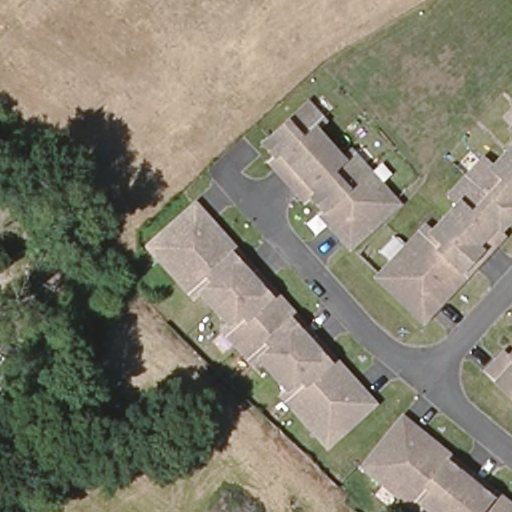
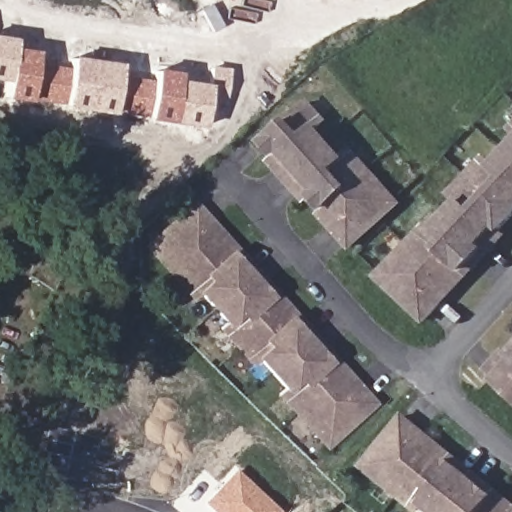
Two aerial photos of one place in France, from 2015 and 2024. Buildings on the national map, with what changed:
new [(223,0),(228,0),(226,2),(223,0)]
new [(225,99),(208,97),(202,129),(147,121),(147,119),(116,115),(61,108),(62,105),(32,102),(6,99),(10,83),(0,81),(0,36),(14,38),(12,48),(37,51),(35,64),(69,69),(70,56),(121,64),(120,77),(154,81),(154,70),(180,73),(179,81),(207,84),(211,66),(229,68),(225,99)]
unchanged [(325,210),(313,197),(309,201),(301,192),(280,168),(272,159),(277,154),(267,142),(312,102),(328,121),(319,129),(346,159),(355,151),(398,201),(402,205),(390,215),(356,244),(353,248),(337,229),(322,213),(325,210)]
unchanged [(425,324),(390,291),(378,281),(382,277),(427,230),(433,236),(461,208),(452,199),(487,164),(496,172),(512,154),(512,221),(501,234),(505,238),(497,247),(475,270),(467,279),(456,291),(442,307),(425,324)]
unchanged [(314,436),(281,398),(287,393),(262,363),(255,369),(223,332),(229,326),(203,297),(197,302),(154,252),(150,249),(162,238),(199,206),(216,224),(215,225),(229,242),(240,254),(247,263),(268,286),(276,296),(297,320),(306,329),(326,353),(335,362),(345,374),(360,391),(360,390),(377,409),(340,441),(329,450),(327,452),(324,448),(314,436)]
unchanged [(512,357),(512,402),(486,376),(497,364),(505,356),(510,360),(512,357)]
unchanged [(422,500),(417,507),(366,465),(362,462),(372,450),(403,412),(422,427),(422,428),(438,442),(451,453),(460,460),(484,480),(493,488),(512,502),(512,512),(437,512),(422,500)]
new [(279,512),(214,512),(204,503),(236,470),(280,511),(279,512)]

